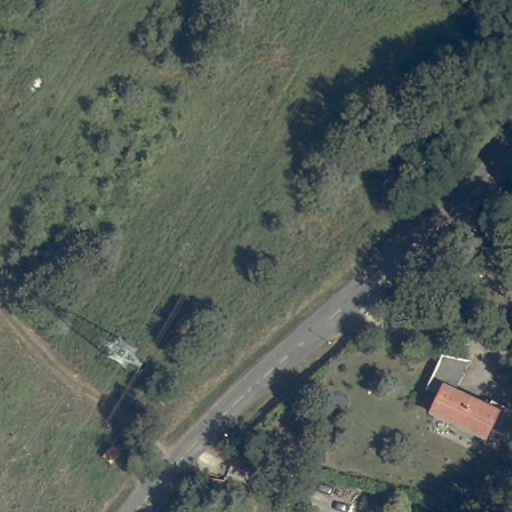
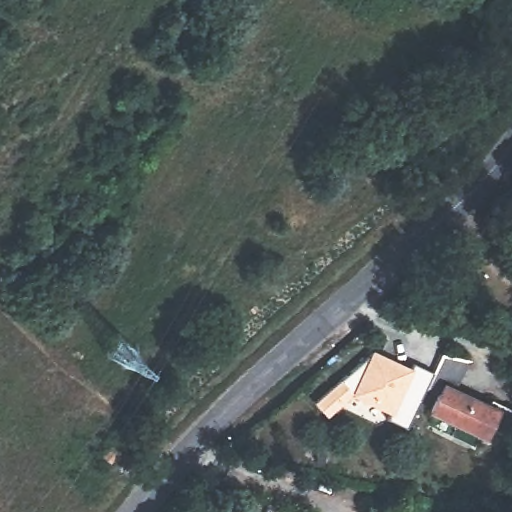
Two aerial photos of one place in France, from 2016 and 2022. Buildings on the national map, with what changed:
unchanged [(512,405),(512,436),(492,425),(488,434),(434,408),(442,392),(428,386),(445,351),(471,356),(457,386),(491,402),(494,396),(512,405)]
new [(428,386),(408,428),(387,420),(390,413),(353,396),(327,415),(316,402),(374,352),(412,367),(415,361),(436,370),(428,386)]
unchanged [(117,448),(125,456),(116,467),(107,460),(117,448)]

